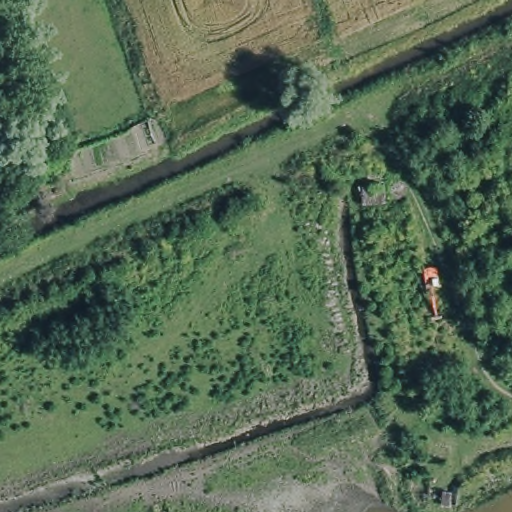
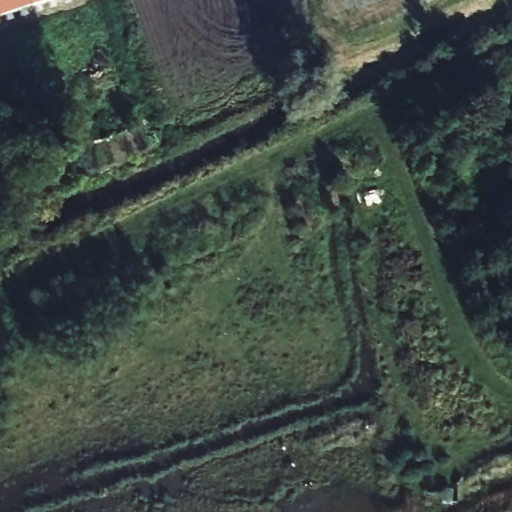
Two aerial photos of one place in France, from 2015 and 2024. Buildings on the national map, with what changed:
new [(0,17),(0,0),(56,0),(0,17)]

